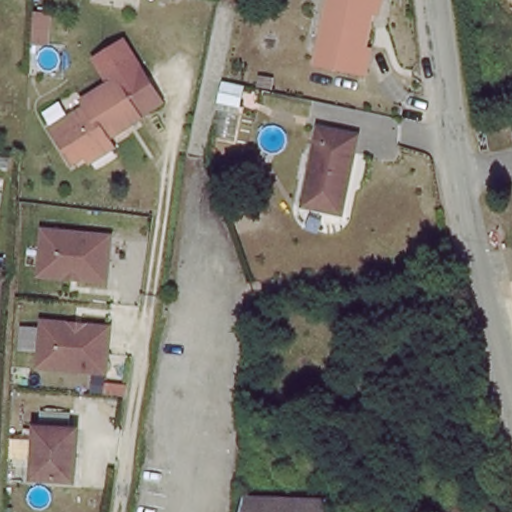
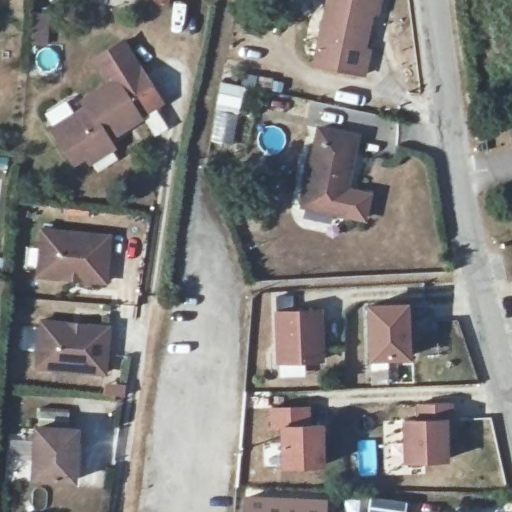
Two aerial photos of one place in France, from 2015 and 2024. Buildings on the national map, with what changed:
unchanged [(36,0),(56,0),(48,28),(31,24),(36,0)]
unchanged [(315,64),(335,0),(382,0),(367,47),(370,57),(362,80),(315,64)]
unchanged [(118,87),(113,81),(140,64),(168,106),(144,125),(118,87)]
unchanged [(93,171),(88,163),(77,171),(53,138),(86,115),(85,111),(118,87),(144,125),(113,146),(117,154),(93,171)]
unchanged [(311,208),(319,127),(359,133),(354,177),(350,177),(346,213),(311,208)]
unchanged [(39,280),(42,228),(118,234),(113,285),(39,280)]
new [(295,378),(277,379),(276,363),(276,309),(275,296),(293,295),(293,309),(322,308),(323,362),(291,363),(295,378)]
new [(418,304),(421,364),(376,366),(373,306),(418,304)]
unchanged [(37,376),(43,319),(115,326),(111,379),(37,376)]
new [(414,418),(415,402),(452,401),(454,439),(448,439),(448,461),(403,463),(402,419),(414,418)]
new [(316,406),(316,428),(333,429),(333,469),(286,469),(286,432),(274,431),(273,407),(316,406)]
unchanged [(33,482),(36,432),(73,433),(69,450),(76,450),(73,483),(33,482)]
unchanged [(318,496),(316,512),(245,512),(246,495),(318,496)]

